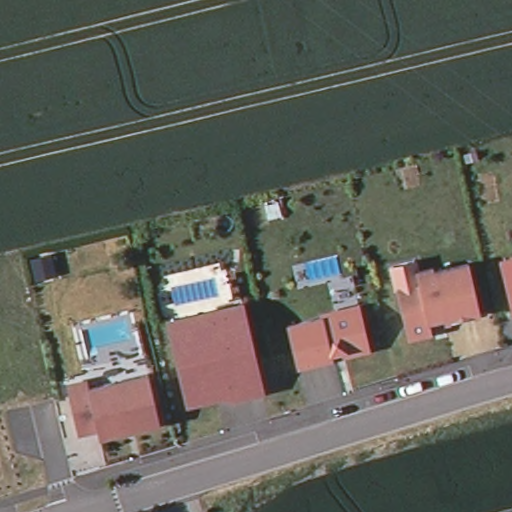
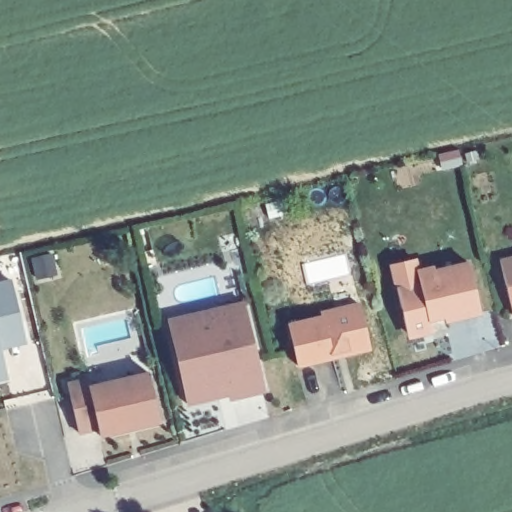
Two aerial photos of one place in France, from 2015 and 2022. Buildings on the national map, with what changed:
new [(53,255),(58,276),(36,280),(32,260),(53,255)]
unchanged [(429,328),(409,332),(404,328),(388,261),(411,255),(414,267),(430,263),(431,267),(466,259),(477,309),(442,317),(427,320),(429,328)]
unchanged [(502,262),(512,259),(512,305),(502,262)]
new [(25,345),(3,350),(8,382),(0,383),(0,283),(13,281),(25,345)]
unchanged [(191,403),(191,406),(190,406),(183,378),(184,378),(184,379),(187,379),(183,362),(181,363),(181,364),(180,364),(174,339),(170,322),(169,320),(171,319),(171,322),(211,313),(243,305),(243,303),(243,302),(244,305),(254,347),(253,347),(253,345),(251,346),(254,362),(257,362),(256,360),(258,360),(266,393),(264,394),(264,391),(231,399),(230,394),(208,399),(191,403)]
unchanged [(299,372),(289,331),(324,323),(323,319),(336,316),(361,310),(371,350),(366,356),(354,359),(334,364),(299,372)]
unchanged [(101,437),(99,429),(80,434),(68,385),(89,380),(91,388),(150,374),(161,423),(141,427),(124,431),(101,437)]

